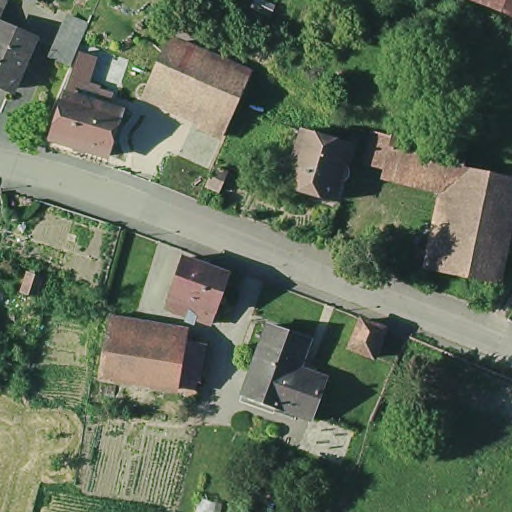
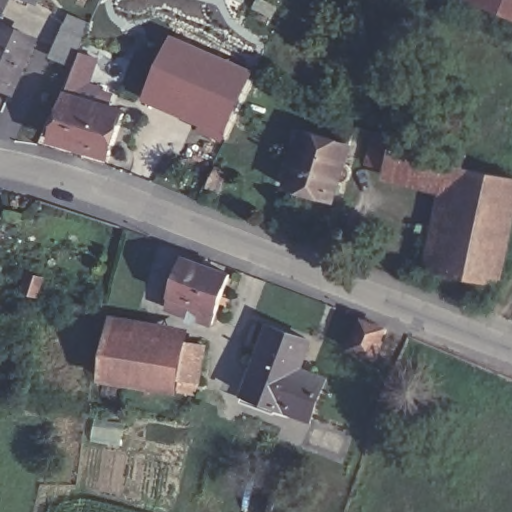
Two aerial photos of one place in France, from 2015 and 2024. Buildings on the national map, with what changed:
unchanged [(42,5),(32,0),(44,0),(42,5)]
unchanged [(473,6),(475,0),(512,0),(512,19),(473,6)]
unchanged [(96,92),(87,90),(85,96),(67,90),(77,60),(75,62),(55,54),(69,23),(88,31),(82,49),(80,54),(106,61),(96,92)]
unchanged [(20,92),(0,84),(0,25),(41,44),(20,92)]
unchanged [(238,129),(235,129),(140,85),(158,42),(257,86),(238,129)]
unchanged [(85,96),(87,90),(96,92),(94,100),(127,110),(113,152),(54,135),(67,90),(85,96)]
unchanged [(307,136),(350,150),(333,205),(290,192),(307,136)]
unchanged [(385,166),(389,139),(463,151),(462,163),(458,178),(385,166)]
unchanged [(462,163),(507,175),(482,295),(437,285),(458,178),(462,163)]
unchanged [(220,169),(228,173),(220,191),(212,187),(220,169)]
unchanged [(203,318),(200,314),(195,311),(193,315),(172,307),(176,295),(189,257),(235,275),(222,311),(217,324),(203,318)]
unchanged [(0,347),(0,318),(7,320),(0,347)]
unchanged [(367,325),(388,333),(377,361),(357,353),(367,325)]
unchanged [(311,419),(243,395),(255,365),(268,326),(310,341),(300,370),(325,379),(322,390),(320,393),(311,419)]
unchanged [(113,328),(209,345),(202,381),(185,379),(183,390),(105,377),(113,328)]

